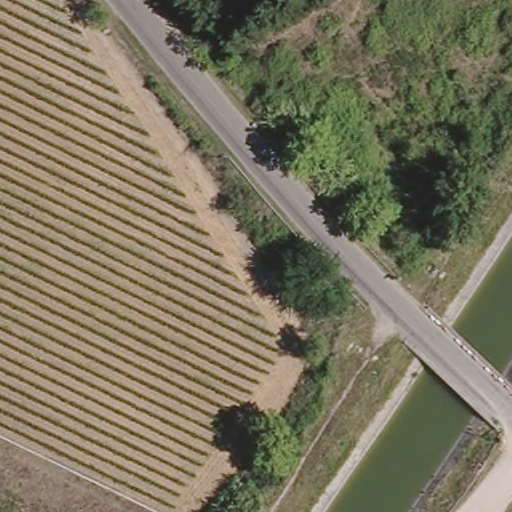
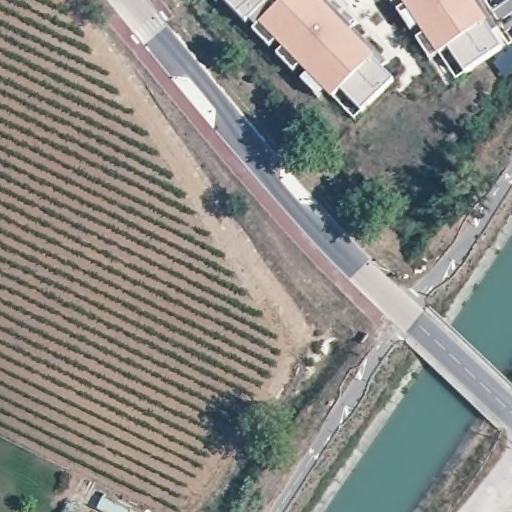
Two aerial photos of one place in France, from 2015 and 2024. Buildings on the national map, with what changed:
new [(250,16),(243,22),(221,0),(266,0),(250,16)]
new [(329,95),(328,95),(297,64),(291,70),(274,53),(280,47),(272,39),(267,45),(250,28),(256,22),(250,16),(266,0),(314,0),(370,57),(368,58),(389,78),(358,109),(350,116),(329,95)]
new [(386,1),(385,0),(388,0),(386,1)]
new [(436,53),(432,55),(431,52),(424,56),(412,38),(418,33),(413,25),(405,29),(393,10),(400,5),(396,0),(466,0),(481,22),(478,24),(494,47),(459,71),(452,75),(436,53)]

